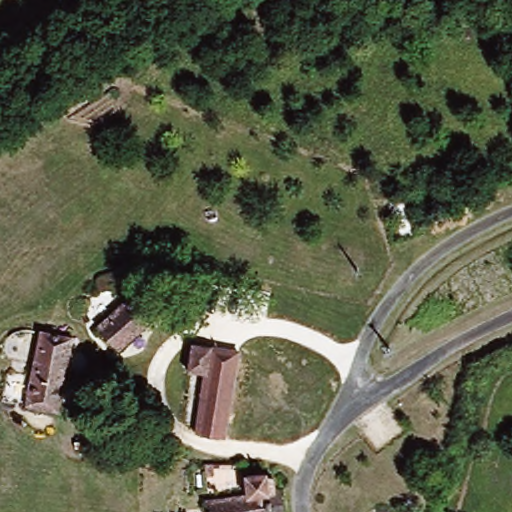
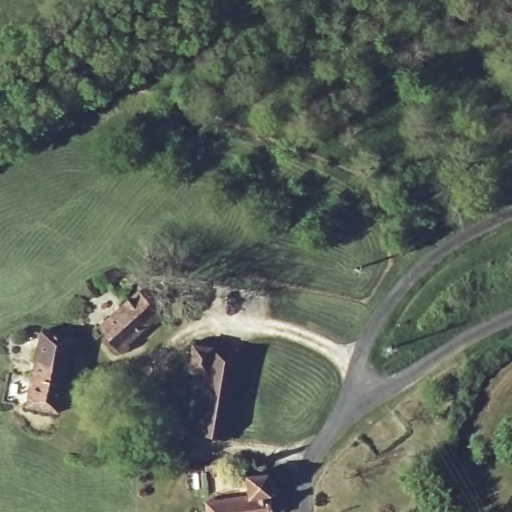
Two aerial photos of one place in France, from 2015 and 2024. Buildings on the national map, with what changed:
unchanged [(195,276),(193,297),(179,295),(181,275),(195,276)]
unchanged [(118,353),(100,332),(138,299),(157,320),(118,353)]
unchanged [(27,411),(40,334),(74,341),(61,415),(27,411)]
unchanged [(239,352),(225,439),(200,435),(201,427),(181,425),(194,345),(239,352)]
unchanged [(168,432),(134,427),(136,413),(170,418),(168,432)]
unchanged [(259,477),(261,484),(272,483),(273,496),(276,496),(280,512),(202,512),(201,505),(244,499),(241,481),(259,477)]

